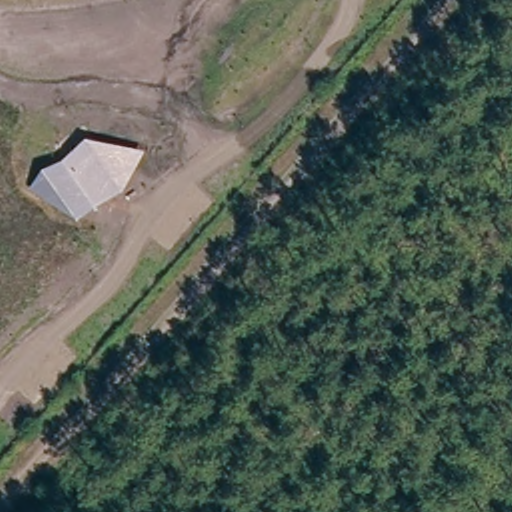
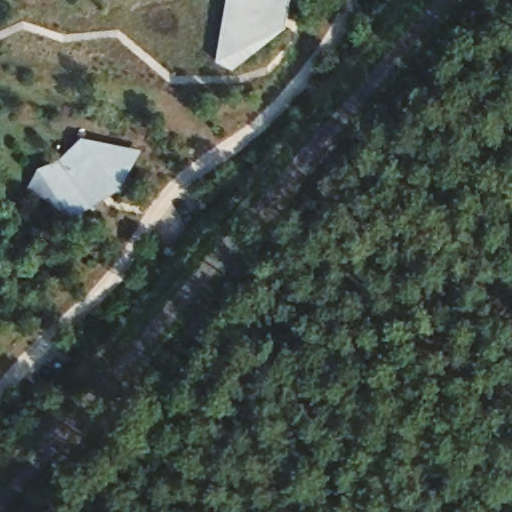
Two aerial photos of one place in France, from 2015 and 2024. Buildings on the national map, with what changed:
new [(235,71),(218,61),(228,0),(292,0),(286,29),(235,71)]
unchanged [(63,160),(85,136),(143,150),(120,190),(75,219),(30,189),(41,170),(63,160)]

